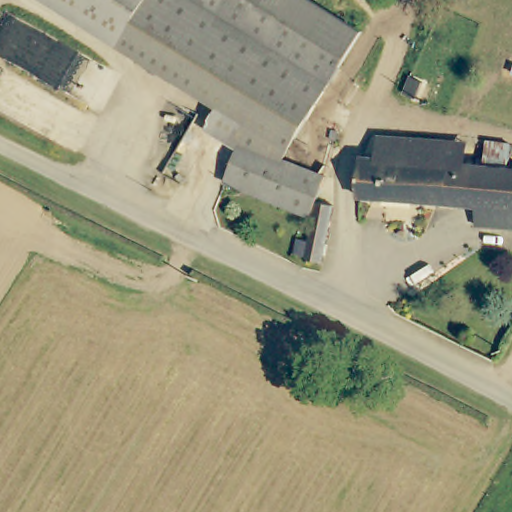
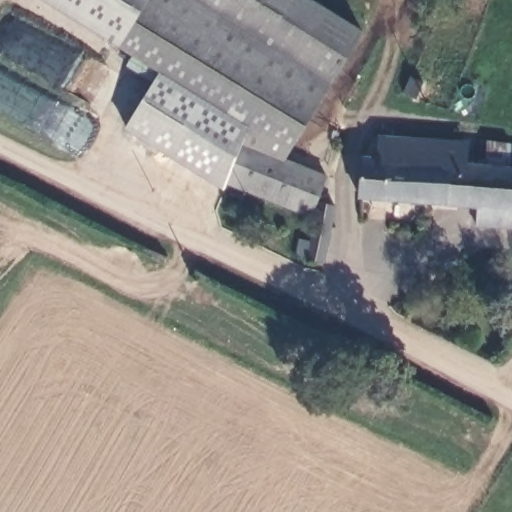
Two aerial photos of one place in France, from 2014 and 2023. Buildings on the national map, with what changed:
unchanged [(60,0),(152,0),(125,43),(60,0)]
unchanged [(283,165),(244,148),(242,150),(234,145),(246,123),(125,43),(152,0),(315,0),(367,33),(283,165)]
new [(223,187),(126,127),(152,82),(127,66),(137,51),(246,123),(234,145),(242,150),(227,185),(223,187)]
unchanged [(471,141),(470,159),(489,161),(491,139),(512,142),(512,225),(482,222),(483,203),(383,192),(365,190),(369,151),(383,152),(386,130),(450,139),(471,141)]
unchanged [(311,220),(227,185),(242,150),(244,148),(283,165),(315,178),(326,181),(317,205),(311,220)]
unchanged [(317,205),(335,209),(327,265),(310,263),(299,260),(302,244),(312,246),(317,205)]

